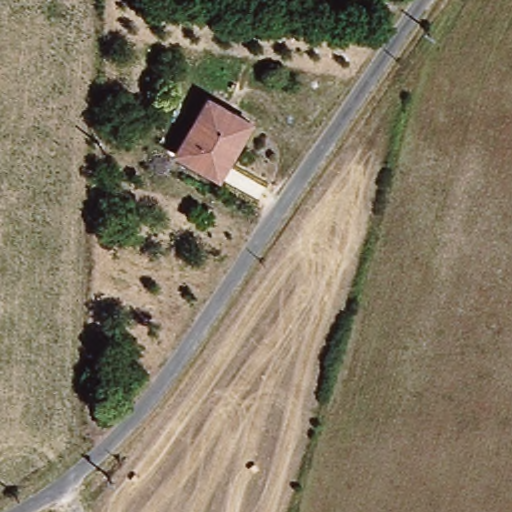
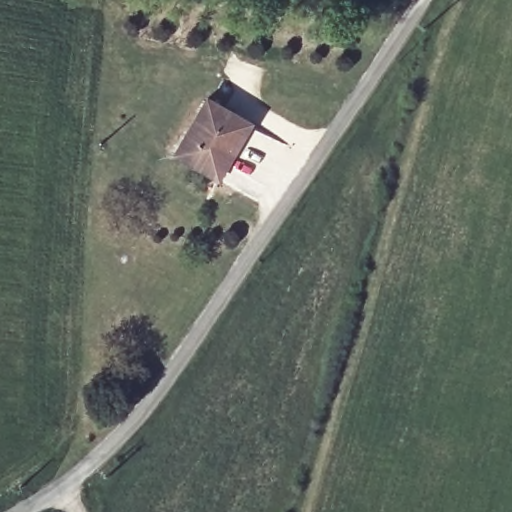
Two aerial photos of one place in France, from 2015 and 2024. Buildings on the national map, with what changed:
unchanged [(245,126),(206,176),(174,152),(213,102),(245,126)]

